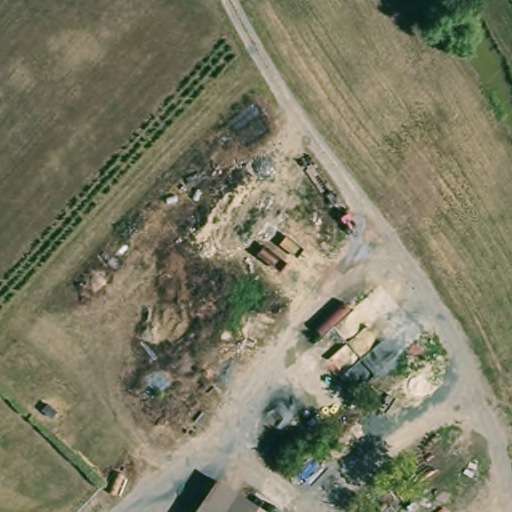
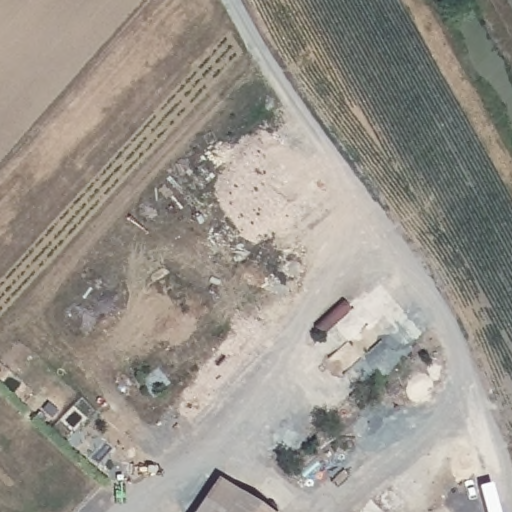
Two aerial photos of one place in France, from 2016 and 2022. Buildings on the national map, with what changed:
unchanged [(270,512),(194,512),(218,477),(270,512)]

